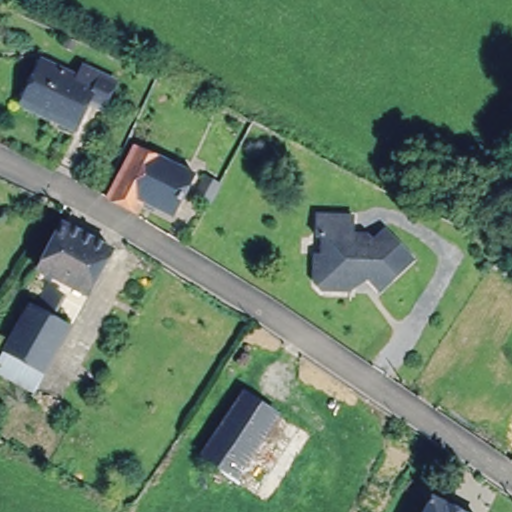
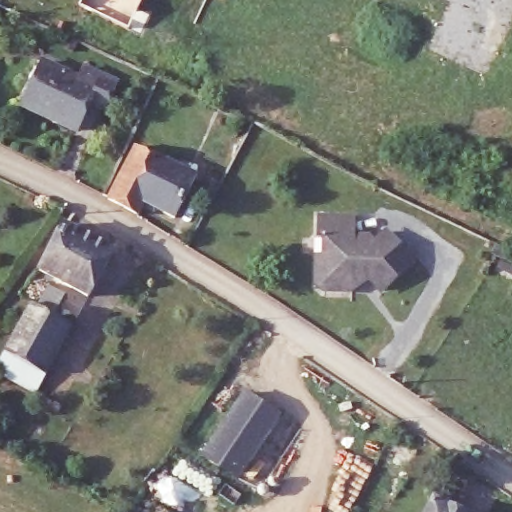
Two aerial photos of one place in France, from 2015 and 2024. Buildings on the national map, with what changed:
new [(79,5),(82,0),(142,0),(128,29),(79,5)]
unchanged [(20,97),(37,62),(74,81),(81,69),(110,82),(96,108),(83,103),(70,129),(45,117),(17,104),(20,97)]
unchanged [(189,177),(167,216),(139,201),(132,213),(104,197),(132,144),(189,177)]
unchanged [(215,194),(204,186),(210,172),(214,168),(227,177),(215,194)]
unchanged [(404,266),(373,293),(356,278),(346,279),(344,295),(318,294),(316,288),(311,286),(313,260),(320,260),(321,246),(313,242),(314,223),(350,226),(349,243),(363,245),(367,251),(381,241),(404,266)]
unchanged [(73,229),(77,232),(124,261),(99,307),(84,299),(46,275),(73,229)]
unchanged [(2,376),(10,362),(38,311),(43,314),(56,292),(80,307),(69,327),(81,335),(52,385),(43,401),(2,376)]
unchanged [(279,416),(240,471),(201,447),(239,391),(279,416)]
unchanged [(481,512),(425,512),(438,487),(481,512)]

